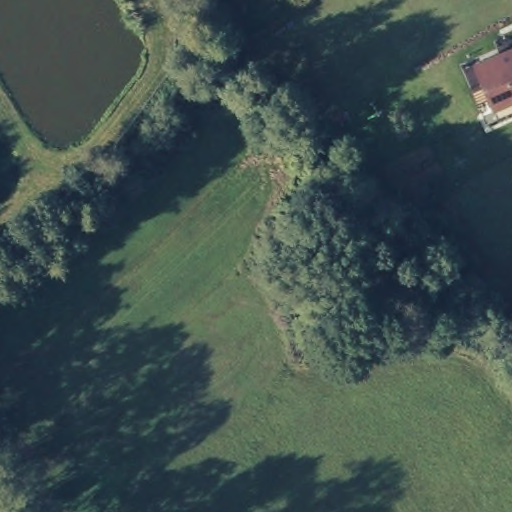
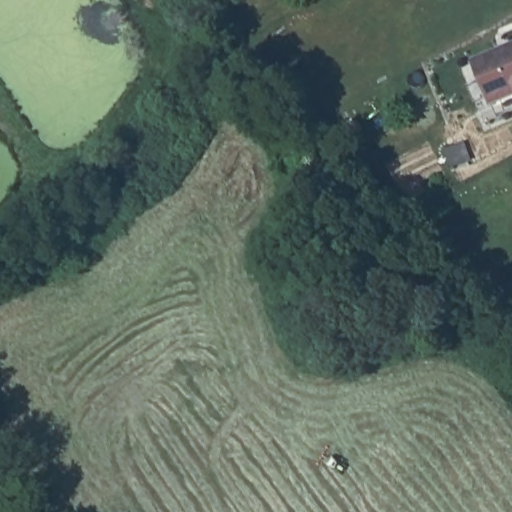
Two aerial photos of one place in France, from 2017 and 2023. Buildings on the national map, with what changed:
unchanged [(491,107),(471,58),(512,40),(512,98),(491,107)]

